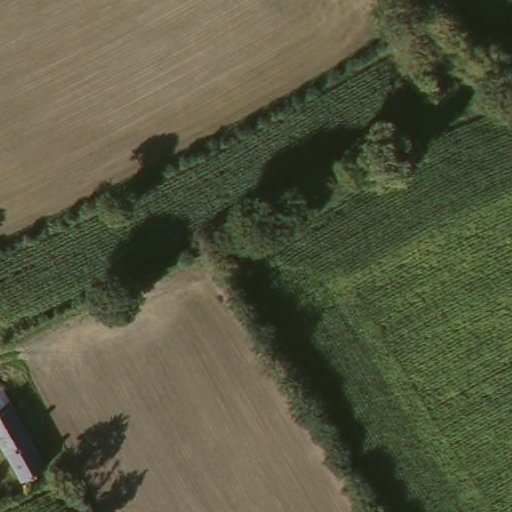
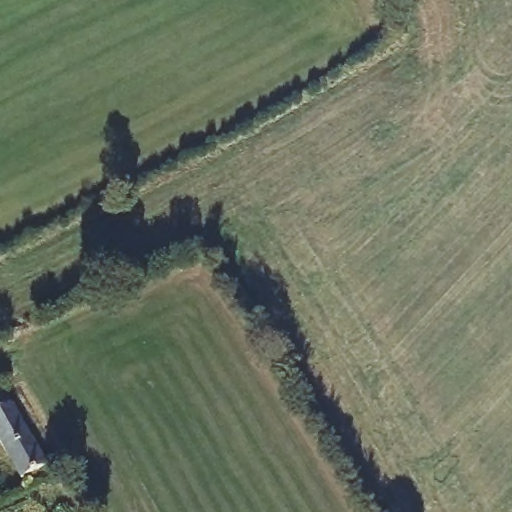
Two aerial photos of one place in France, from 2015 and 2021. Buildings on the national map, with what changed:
unchanged [(50,467),(27,481),(0,440),(0,387),(50,467)]

